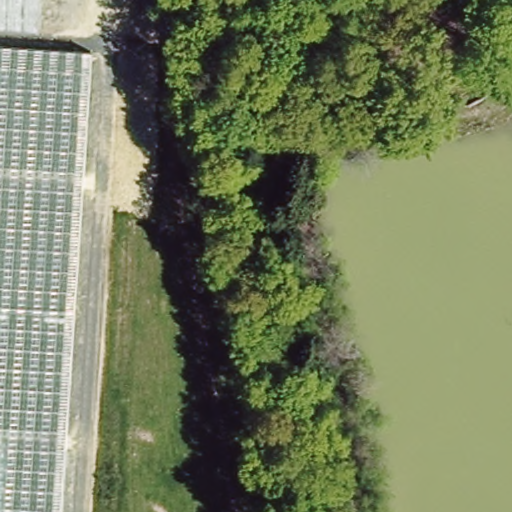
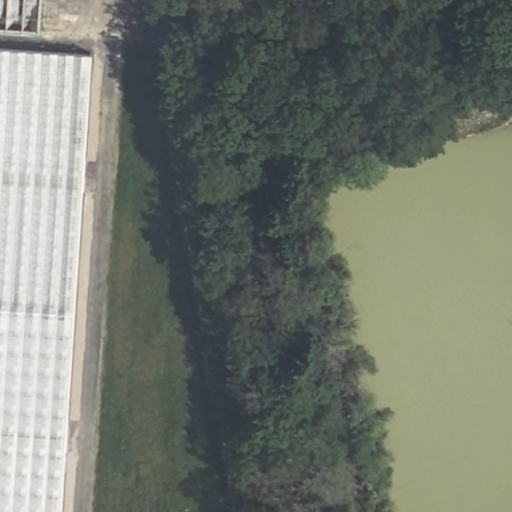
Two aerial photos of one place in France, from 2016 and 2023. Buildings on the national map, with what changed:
unchanged [(82,45),(53,512),(0,512),(0,0),(48,0),(45,41),(82,45)]

